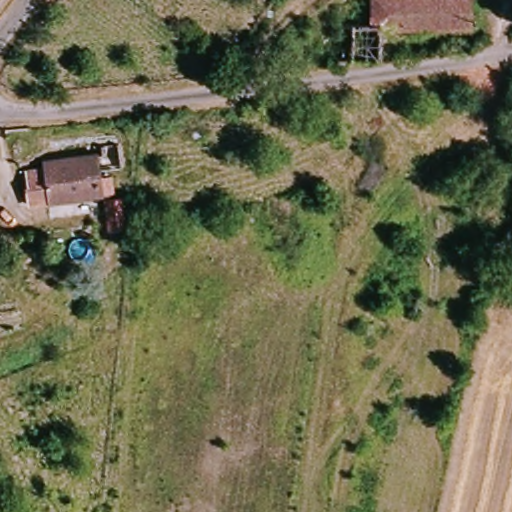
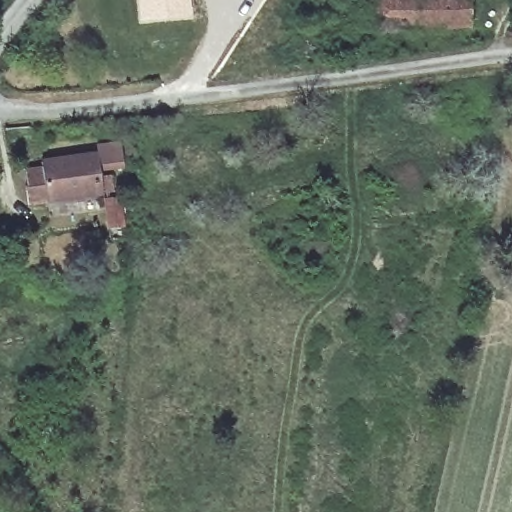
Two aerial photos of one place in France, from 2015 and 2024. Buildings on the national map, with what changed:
new [(139,23),(136,0),(189,0),(191,17),(139,23)]
unchanged [(380,26),(380,0),(479,0),(479,30),(393,30),(393,61),(326,61),(327,26),(380,26)]
unchanged [(109,197),(35,207),(32,191),(35,191),(33,174),(50,172),(49,166),(104,159),(102,148),(121,146),(125,170),(106,173),(109,197)]

